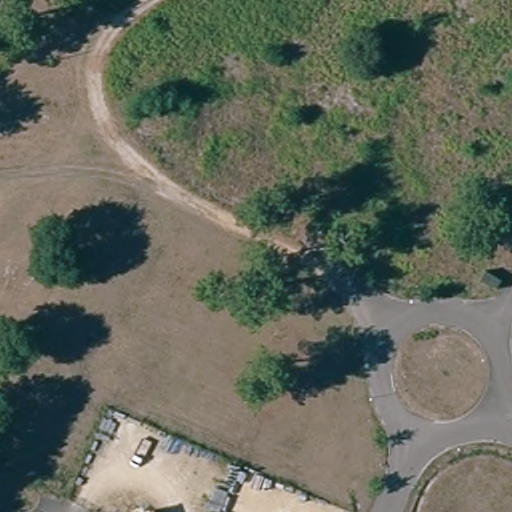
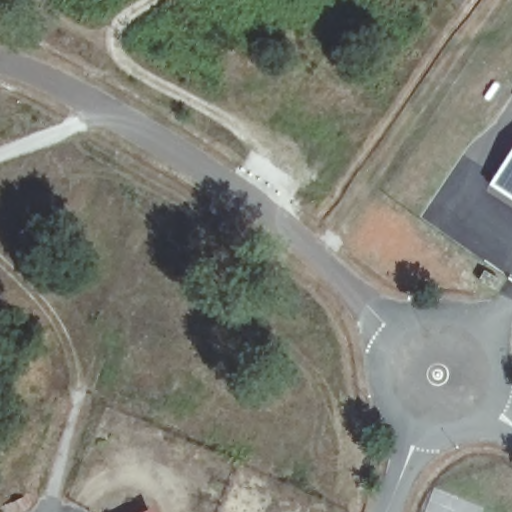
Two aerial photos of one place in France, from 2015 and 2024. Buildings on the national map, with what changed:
new [(512,195),(491,181),(512,149),(512,195)]
unchanged [(480,282),(485,274),(498,283),(493,291),(480,282)]
unchanged [(148,512),(141,512),(147,510),(148,512)]

